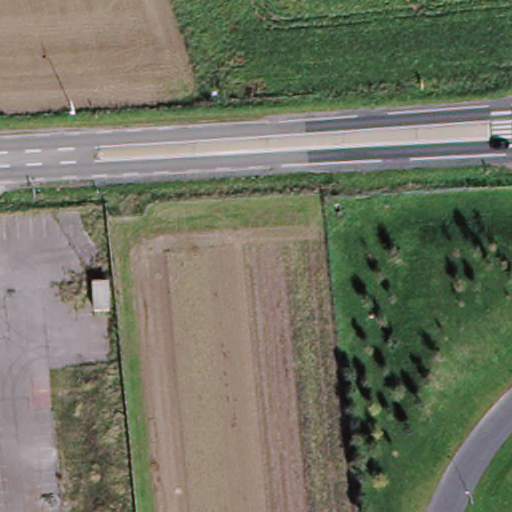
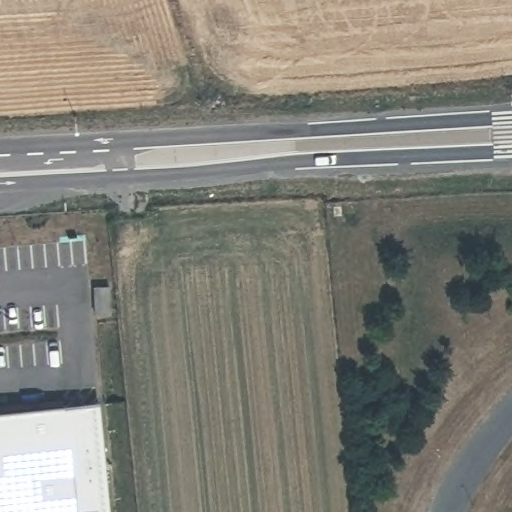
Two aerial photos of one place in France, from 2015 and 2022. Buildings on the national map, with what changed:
demolished [(80,311),(77,283),(94,282),(96,310),(80,311)]
new [(102,403),(112,512),(0,512),(0,412),(102,403)]

